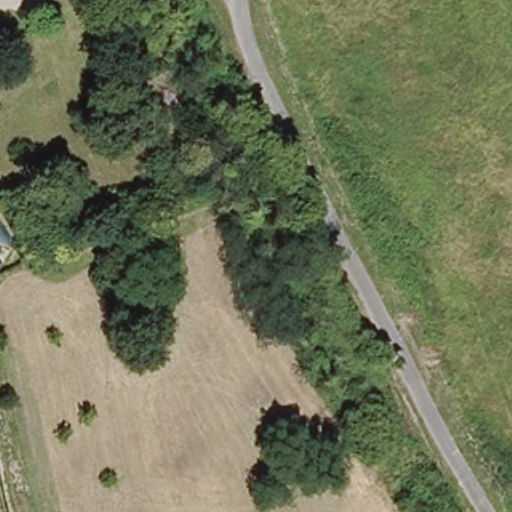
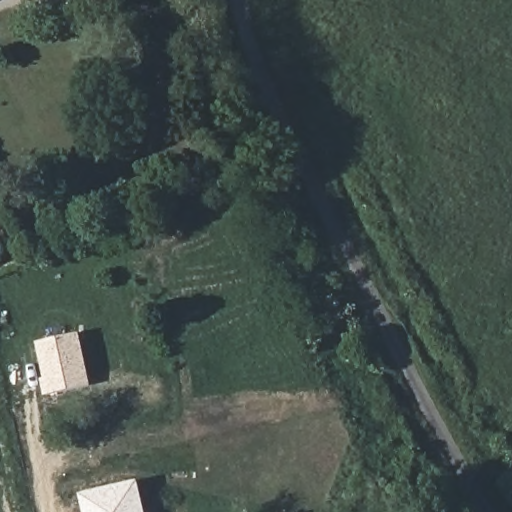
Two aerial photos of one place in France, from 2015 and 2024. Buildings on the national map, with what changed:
new [(44,396),(41,380),(44,379),(36,343),(80,333),(92,386),(44,396)]
new [(80,494),(139,482),(146,512),(84,512),(80,494)]

